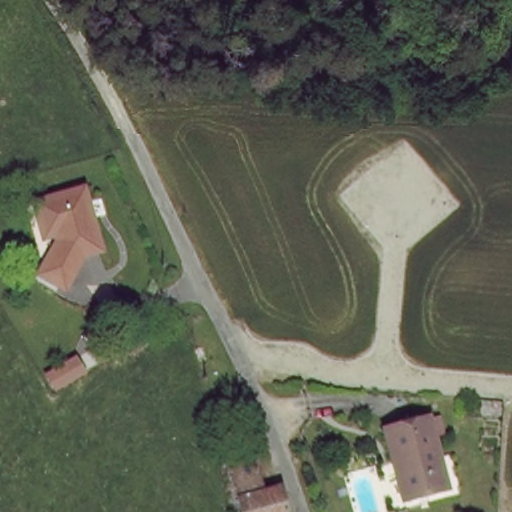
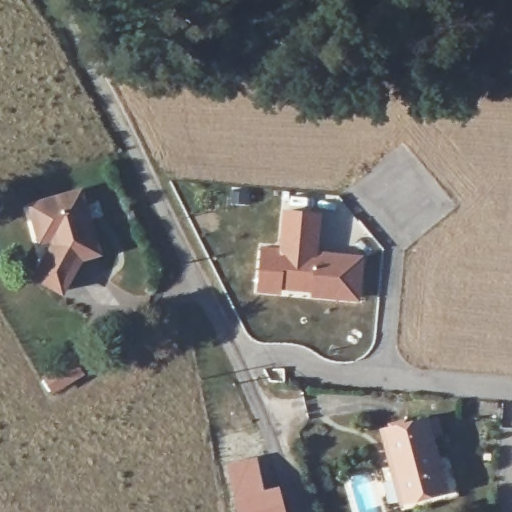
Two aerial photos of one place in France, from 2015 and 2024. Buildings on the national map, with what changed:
unchanged [(108,247),(88,260),(91,263),(83,295),(52,286),(54,276),(71,266),(55,240),(45,245),(28,219),(72,190),(108,247)]
new [(281,246),(284,208),(319,213),(317,252),(363,256),(359,300),(311,296),(311,292),(281,288),(280,295),(256,290),(261,245),(281,246)]
unchanged [(398,465),(390,430),(416,423),(433,420),(449,490),(446,491),(416,498),(406,500),(398,465)]
unchanged [(284,504),(287,512),(239,512),(227,469),(256,460),(264,490),(276,487),(284,504)]

